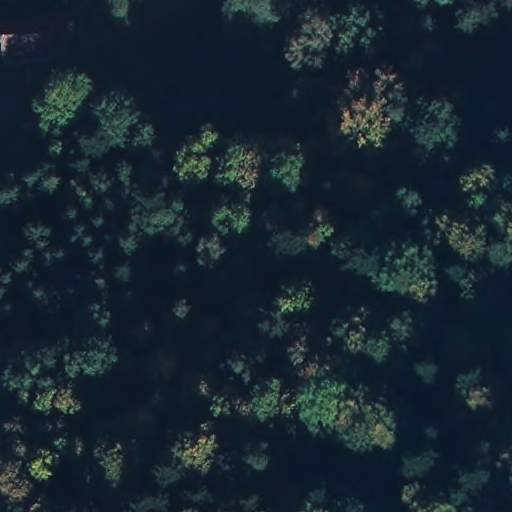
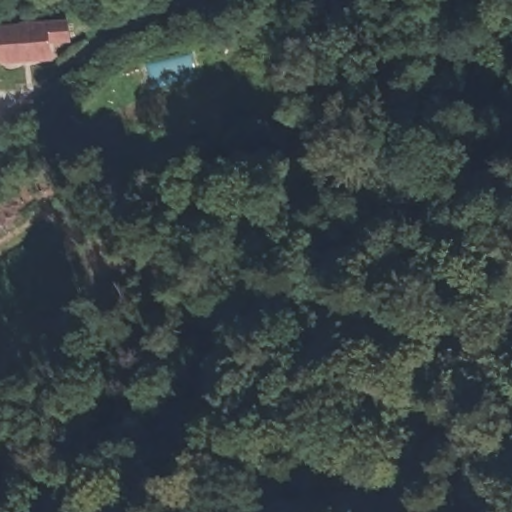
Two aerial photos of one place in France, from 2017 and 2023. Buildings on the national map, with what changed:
unchanged [(79,24),(82,57),(10,61),(8,29),(79,24)]

